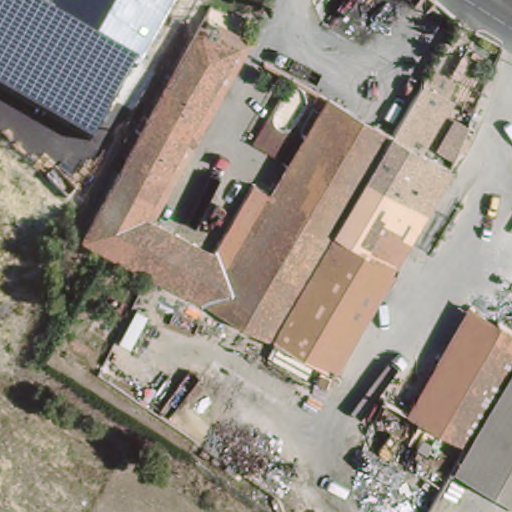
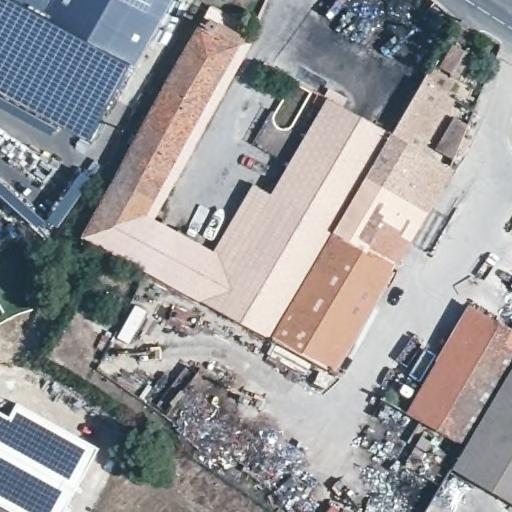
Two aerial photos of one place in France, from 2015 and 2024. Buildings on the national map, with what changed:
unchanged [(0,94),(0,0),(184,0),(158,48),(144,73),(126,64),(92,143),(0,94)]
unchanged [(206,258),(183,297),(79,240),(137,130),(131,124),(138,118),(143,120),(199,15),(219,23),(213,35),(229,44),(138,217),(206,258)]
new [(454,82),(448,94),(456,100),(421,155),(390,136),(432,68),(454,82)]
unchanged [(268,84),(275,70),(300,85),(386,134),(264,342),(206,312),(183,297),(206,258),(246,185),(263,155),(293,100),(268,84)]
demolished [(101,122),(109,110),(120,116),(112,129),(101,122)]
unchanged [(264,342),(386,134),(447,170),(325,378),(264,342)]
unchanged [(424,422),(394,402),(454,300),(512,329),(512,351),(461,440),(424,422)]
unchanged [(461,440),(512,351),(512,508),(442,471),(461,440)]
new [(12,512),(0,505),(0,412),(9,417),(18,404),(98,449),(61,512),(12,512)]

